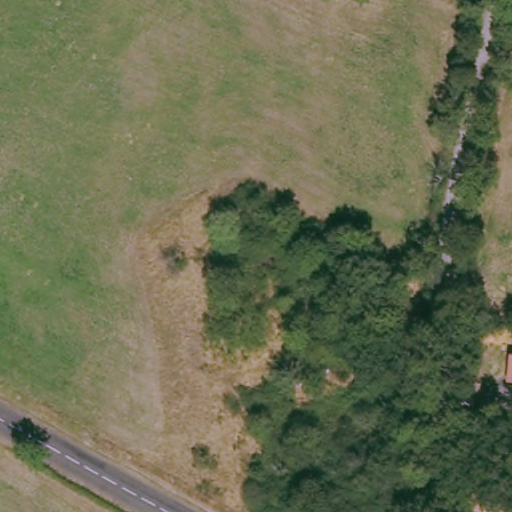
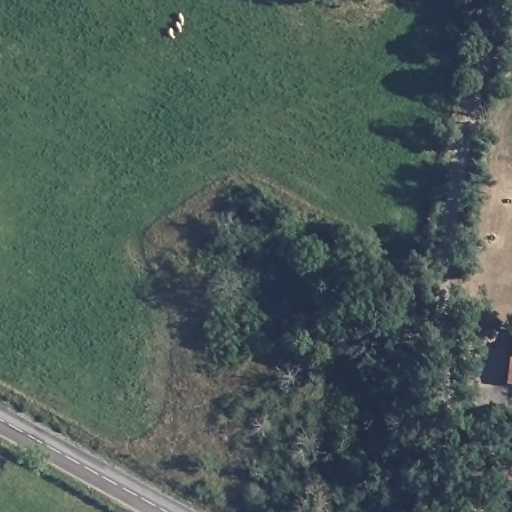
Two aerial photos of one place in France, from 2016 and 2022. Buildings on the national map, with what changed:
unchanged [(507,387),(508,380),(510,362),(512,362),(512,387),(507,387)]
unchanged [(475,490),(490,492),(486,512),(465,512),(468,495),(473,495),(475,490)]

